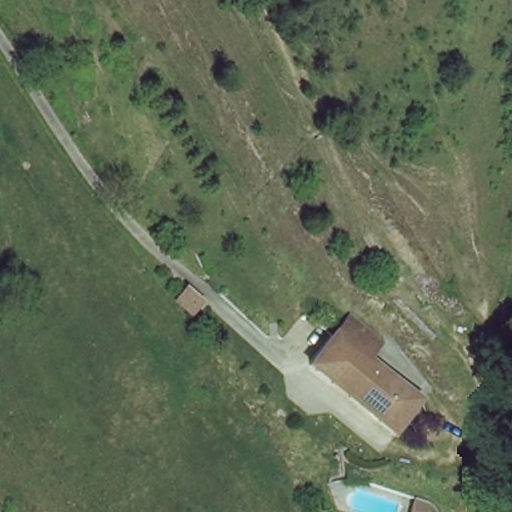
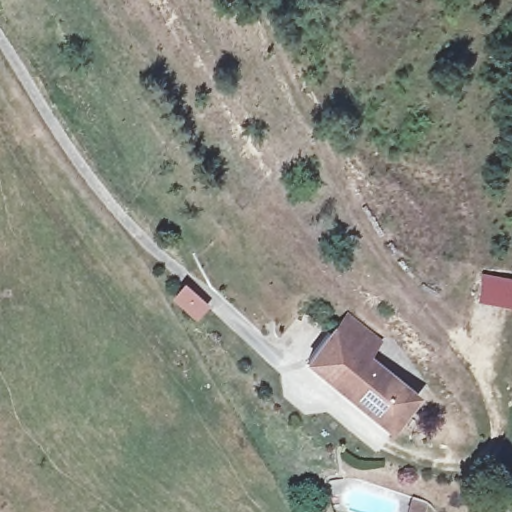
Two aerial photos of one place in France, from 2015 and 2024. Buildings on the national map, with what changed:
new [(512,315),(475,306),(482,278),(512,286),(512,315)]
unchanged [(214,300),(207,308),(194,297),(200,289),(214,300)]
unchanged [(341,314),(377,342),(365,358),(369,361),(414,397),(389,429),(344,394),(327,381),(304,362),(319,343),(329,329),(341,314)]
unchanged [(441,512),(428,512),(434,493),(445,497),(441,512)]

